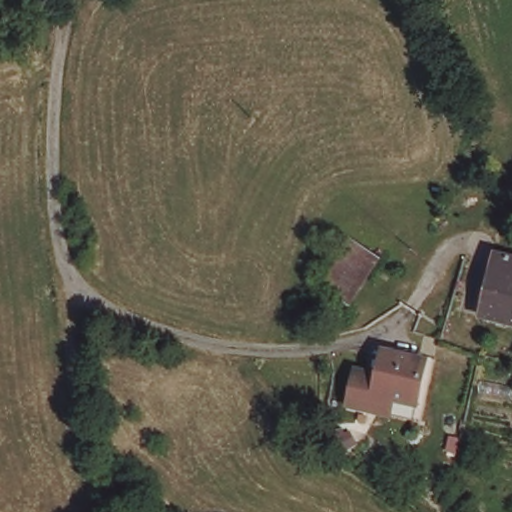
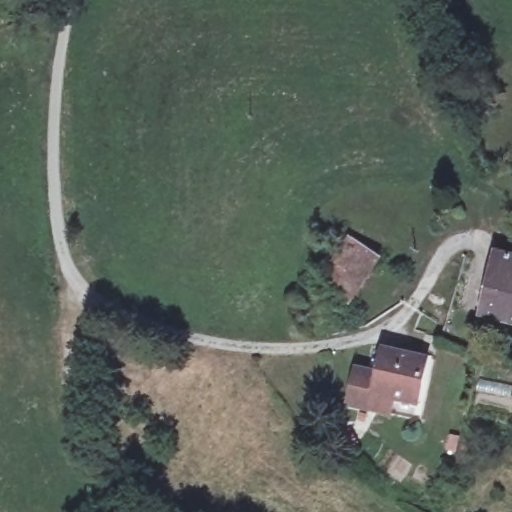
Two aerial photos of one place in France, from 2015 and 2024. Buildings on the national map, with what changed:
unchanged [(356,305),(325,284),(332,274),(355,239),(386,259),(356,305)]
unchanged [(496,282),(502,255),(511,257),(512,258),(512,323),(496,318),(487,317),(496,282)]
unchanged [(433,351),(424,395),(420,410),(379,401),(379,402),(356,397),(364,361),(375,363),(377,369),(377,371),(382,372),(389,342),(433,351)]

